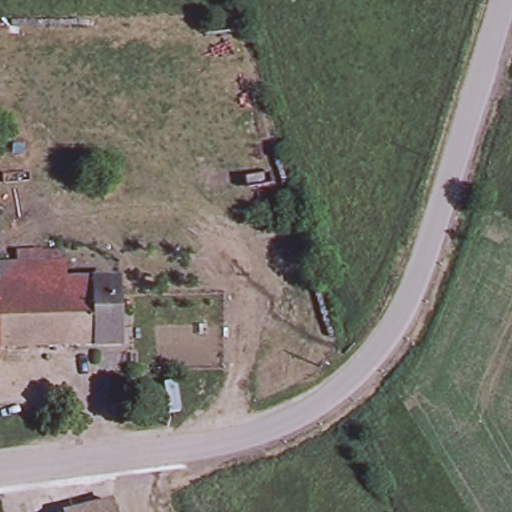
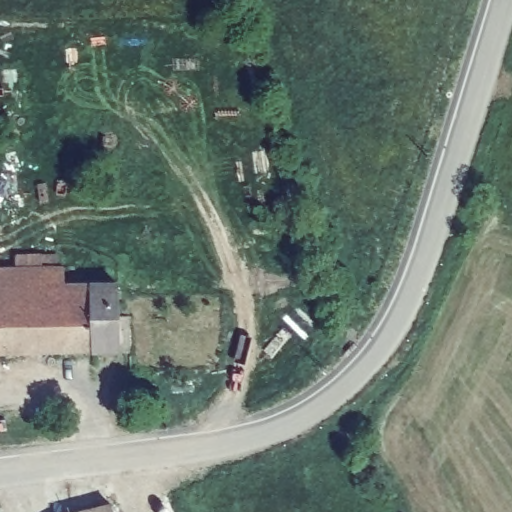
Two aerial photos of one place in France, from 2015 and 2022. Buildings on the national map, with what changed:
unchanged [(60,251),(60,262),(66,262),(67,281),(120,281),(121,344),(0,348),(0,249),(60,251)]
unchanged [(110,512),(87,512),(108,507),(110,512)]

